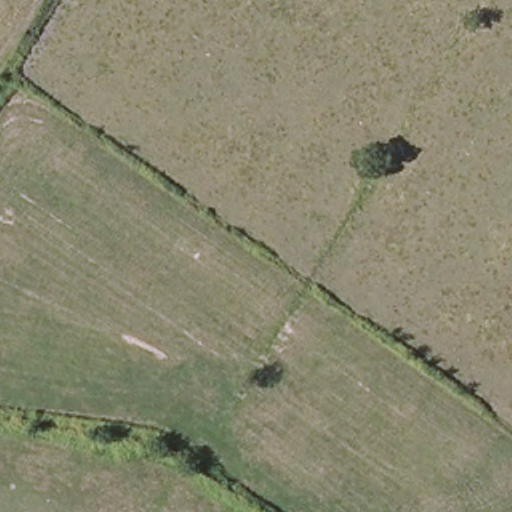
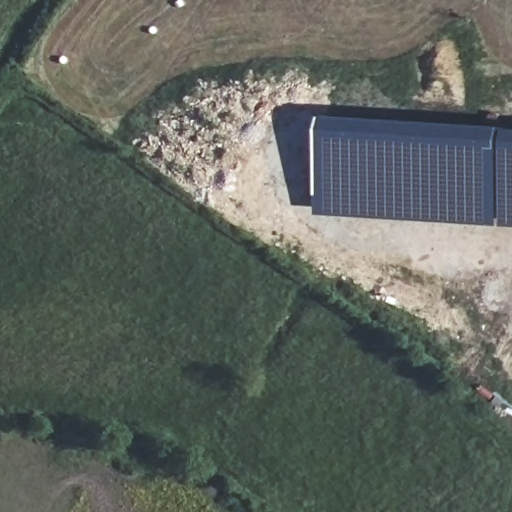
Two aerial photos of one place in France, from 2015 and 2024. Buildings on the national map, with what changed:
new [(320,214),(327,116),(512,129),(512,226),(320,214)]

